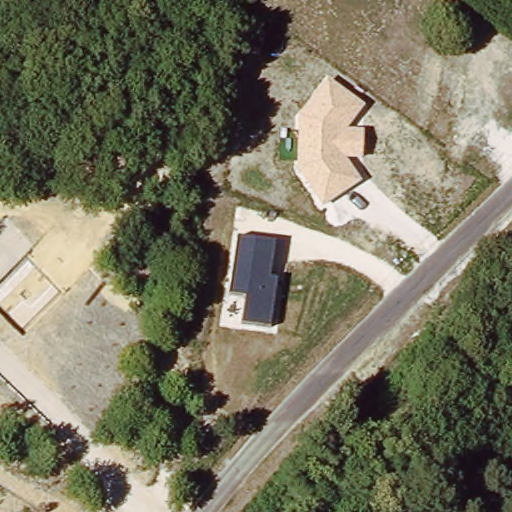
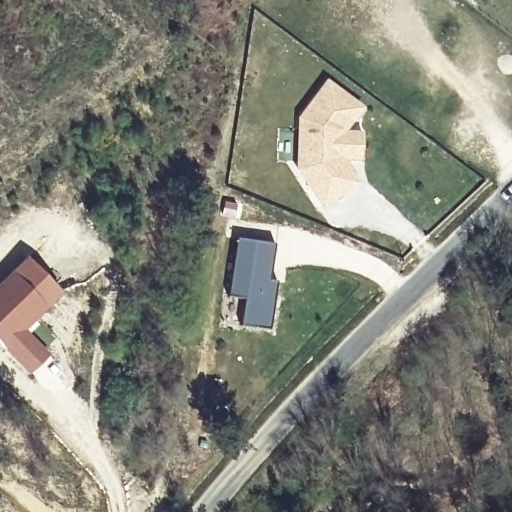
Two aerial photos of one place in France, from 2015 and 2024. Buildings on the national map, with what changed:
unchanged [(365,109),(347,132),(364,132),(363,163),(347,163),(360,183),(321,208),(299,172),(299,119),(327,82),(365,109)]
unchanged [(276,245),(270,281),(279,282),(272,329),(242,326),(245,299),(230,297),(237,240),(276,245)]
new [(26,330),(50,354),(30,374),(0,345),(0,281),(27,254),(63,293),(26,330)]

